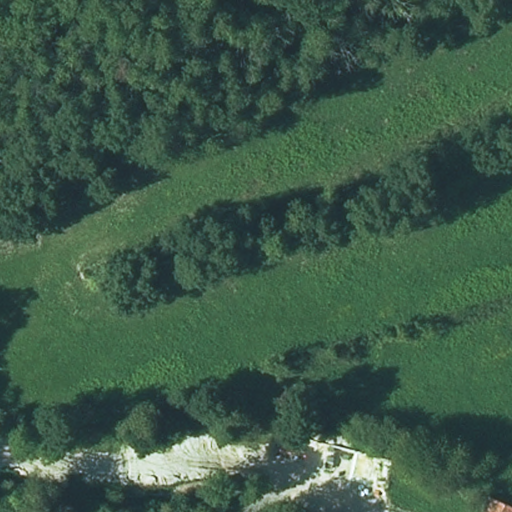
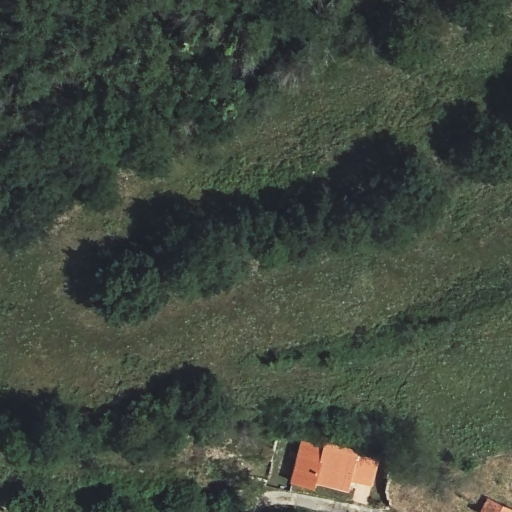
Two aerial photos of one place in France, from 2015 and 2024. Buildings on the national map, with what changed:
new [(376,487),(356,484),(351,495),(318,488),(316,495),(294,490),(304,440),(384,460),(376,487)]
unchanged [(493,504),(512,511),(512,512),(490,512),(493,504)]

